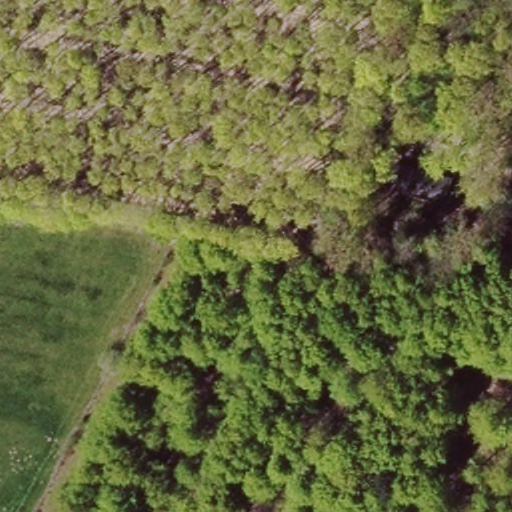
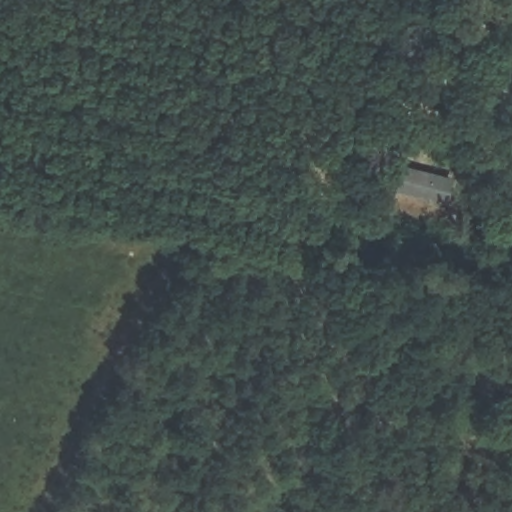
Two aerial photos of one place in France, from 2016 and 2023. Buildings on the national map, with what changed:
unchanged [(453,172),(446,199),(387,183),(393,158),(453,172)]

